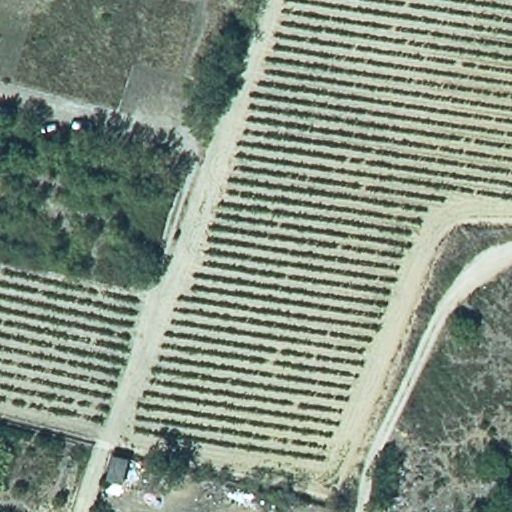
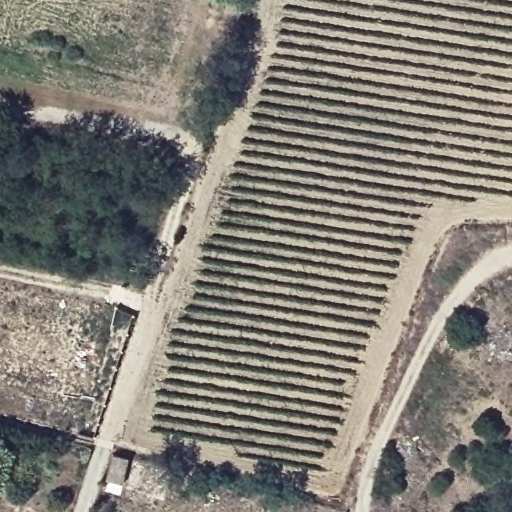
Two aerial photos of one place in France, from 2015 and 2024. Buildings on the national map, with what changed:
unchanged [(131,455),(124,489),(104,484),(112,452),(131,455)]

